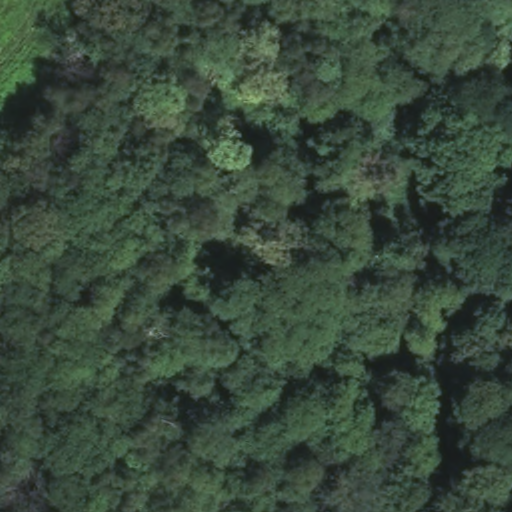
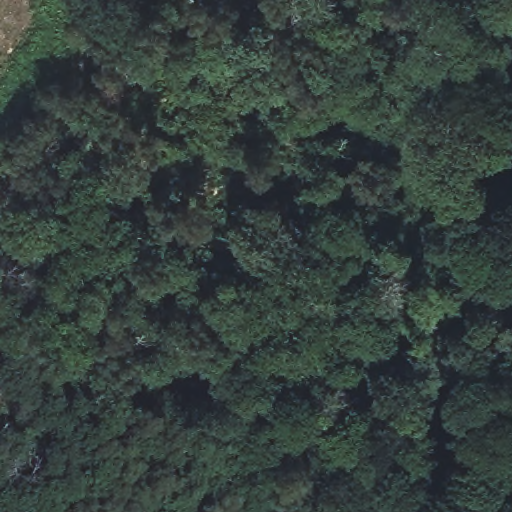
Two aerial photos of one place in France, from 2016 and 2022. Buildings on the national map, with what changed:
[]

